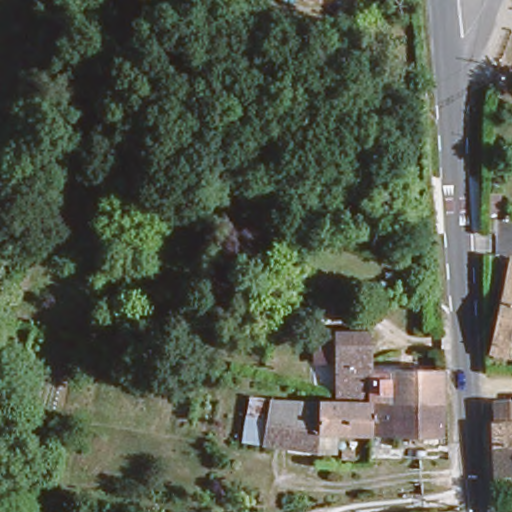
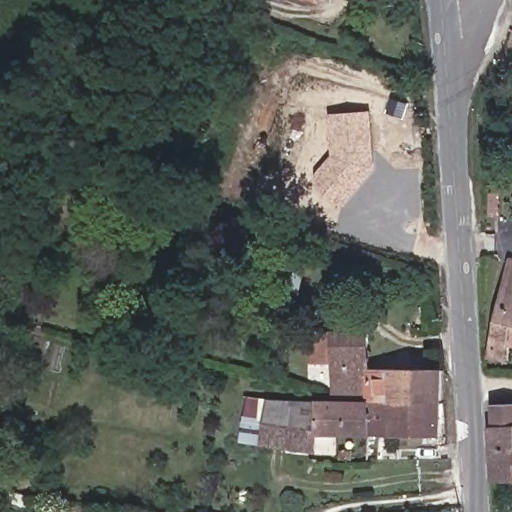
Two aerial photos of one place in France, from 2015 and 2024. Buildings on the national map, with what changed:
new [(330,115),(371,110),(376,169),(342,206),(313,180),(333,155),(330,115)]
unchanged [(509,335),(505,352),(485,348),(507,255),(512,256),(512,336),(509,335)]
unchanged [(284,283),(289,256),(307,260),(302,287),(284,283)]
unchanged [(367,394),(367,390),(367,385),(329,385),(329,382),(315,381),(316,356),(329,356),(330,327),(364,328),(367,364),(440,365),(439,398),(367,398),(367,394)]
unchanged [(367,432),(304,430),(302,450),(242,438),(247,414),(275,420),(277,394),(329,395),(329,392),(367,394),(367,398),(367,432)]
unchanged [(438,433),(367,432),(367,398),(439,398),(438,433)]
unchanged [(489,475),(485,419),(490,419),(512,420),(512,475),(489,475)]

